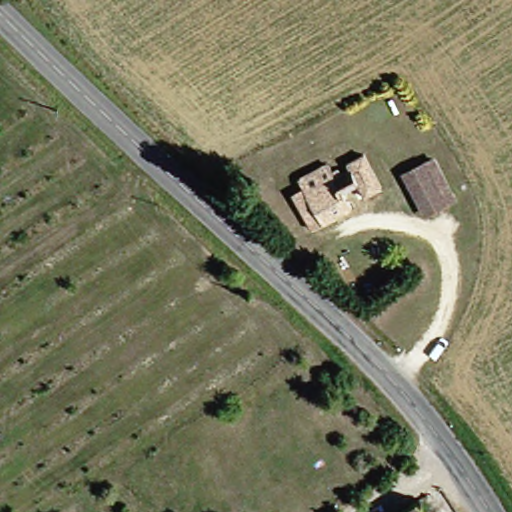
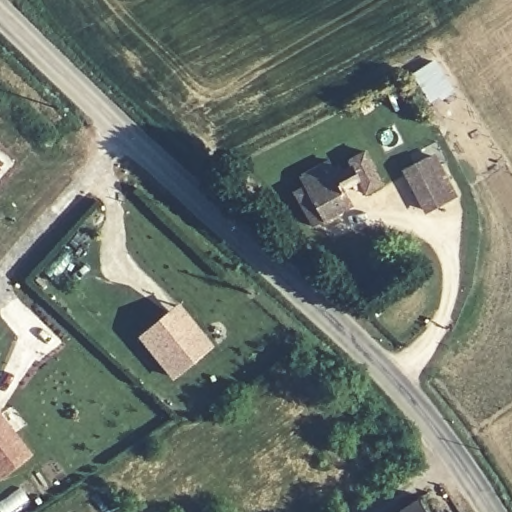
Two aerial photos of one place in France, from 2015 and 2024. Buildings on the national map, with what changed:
unchanged [(285,196),(297,190),(291,179),(320,165),(323,170),(330,167),(332,171),(337,169),(335,165),(355,154),(373,190),(354,200),(347,189),(335,195),(341,211),(303,231),(285,196)]
unchanged [(395,176),(420,164),(427,160),(447,199),(438,204),(414,215),(395,176)]
new [(140,339),(168,315),(186,336),(196,328),(210,345),(171,377),(140,339)]
new [(0,476),(0,418),(28,455),(0,476)]
unchanged [(413,512),(396,512),(407,504),(413,512)]

